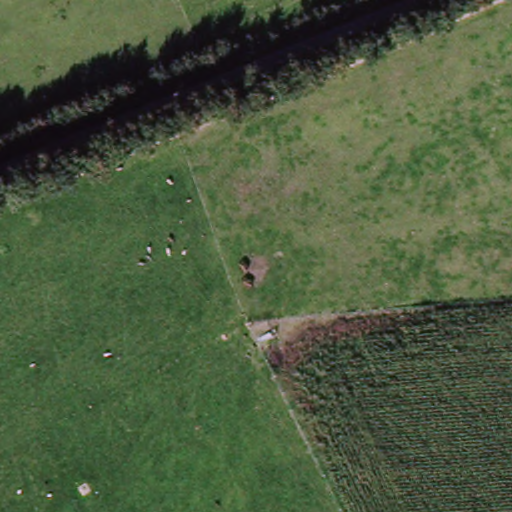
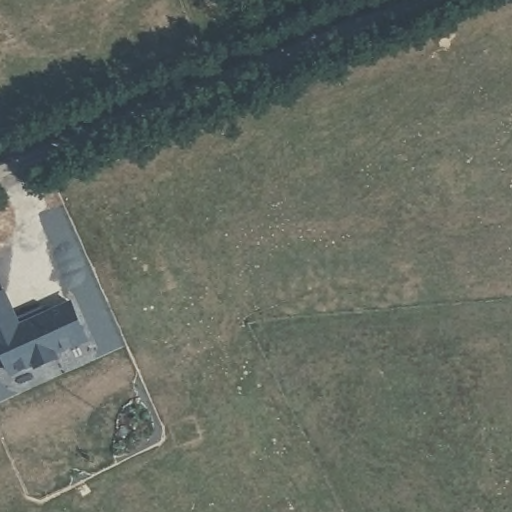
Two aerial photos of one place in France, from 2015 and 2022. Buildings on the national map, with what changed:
new [(22,320),(70,298),(90,341),(58,354),(60,359),(36,370),(34,363),(10,375),(0,355),(0,290),(4,288),(22,320)]

